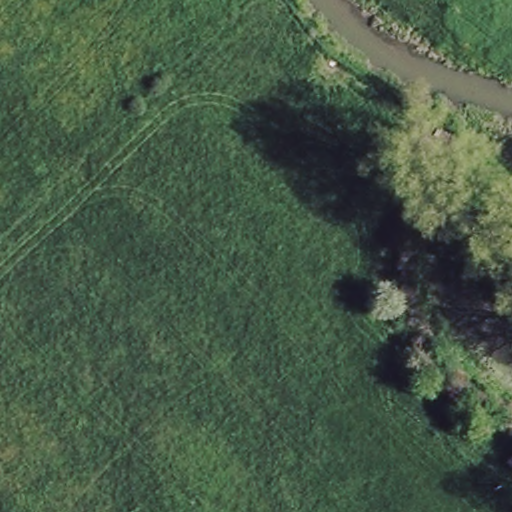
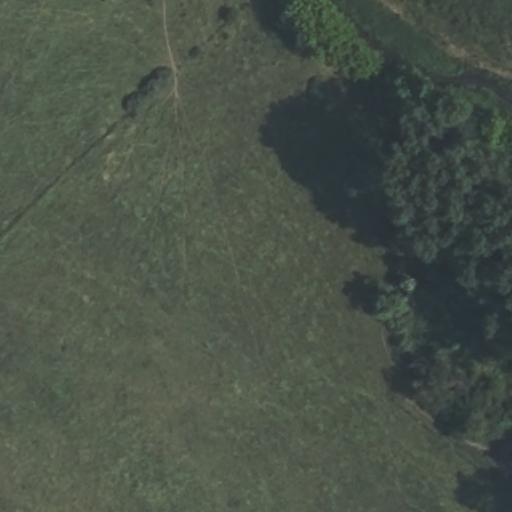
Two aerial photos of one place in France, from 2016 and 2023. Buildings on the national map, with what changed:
unchanged [(512,451),(512,471),(503,462),(512,451)]

